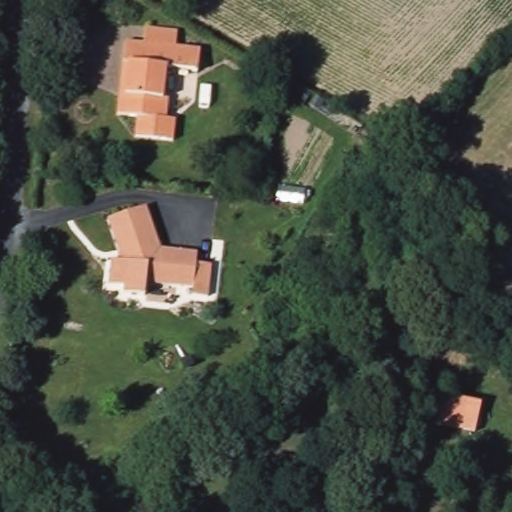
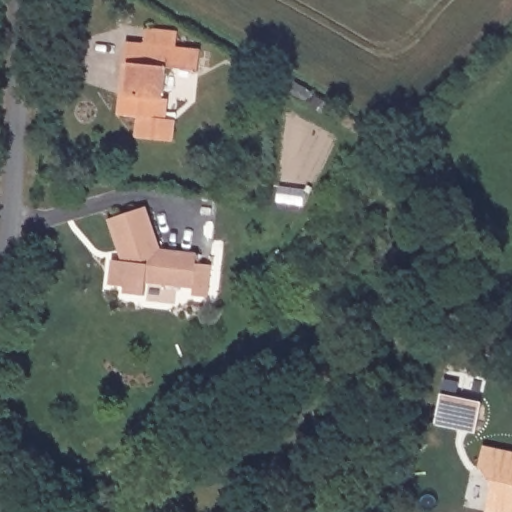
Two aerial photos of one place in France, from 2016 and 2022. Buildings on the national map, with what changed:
unchanged [(168,104),(166,123),(175,124),(173,146),(135,142),(137,122),(118,120),(120,98),(124,68),(125,47),(144,48),(145,33),(178,36),(176,52),(200,55),(198,76),(166,72),(163,103),(168,104)]
unchanged [(107,219),(146,206),(160,249),(197,253),(196,263),(211,265),(208,297),(192,295),(193,288),(146,283),(145,296),(124,293),(124,287),(109,285),(111,260),(121,260),(118,250),(107,219)]
unchanged [(442,394),(481,402),(475,432),(435,424),(442,394)]
new [(491,484),(479,465),(483,446),(512,452),(512,512),(488,512),(485,511),(491,484)]

